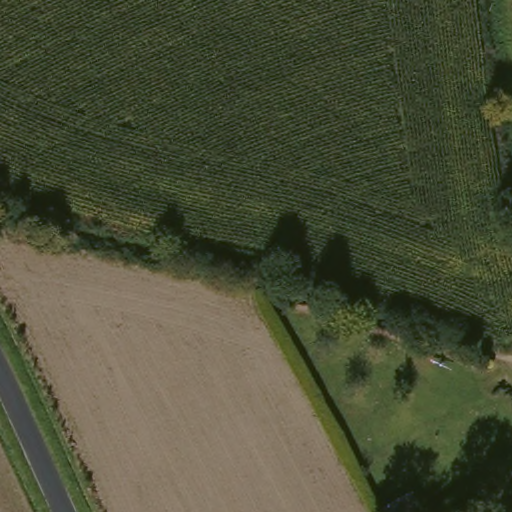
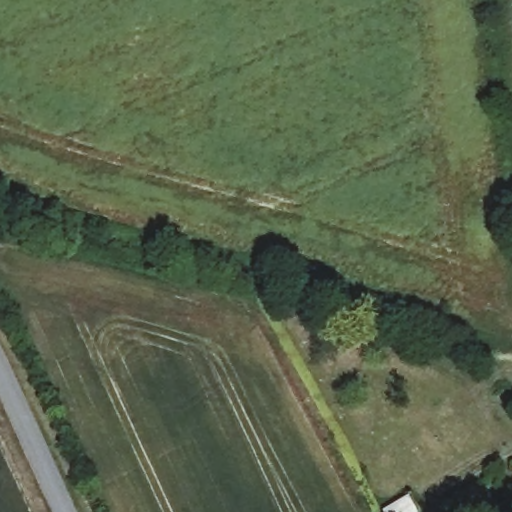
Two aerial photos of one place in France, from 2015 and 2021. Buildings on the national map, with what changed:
unchanged [(424,512),(389,512),(415,497),(424,512)]

